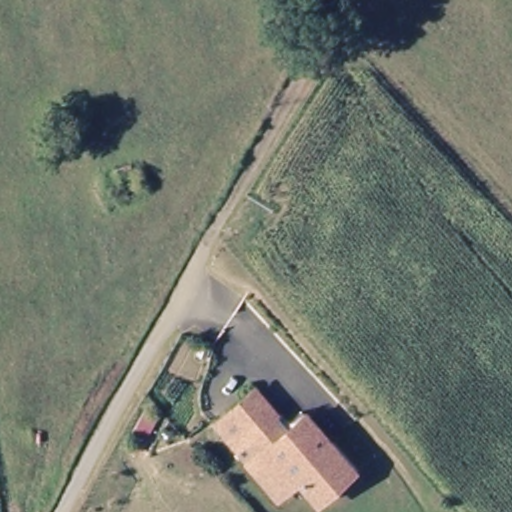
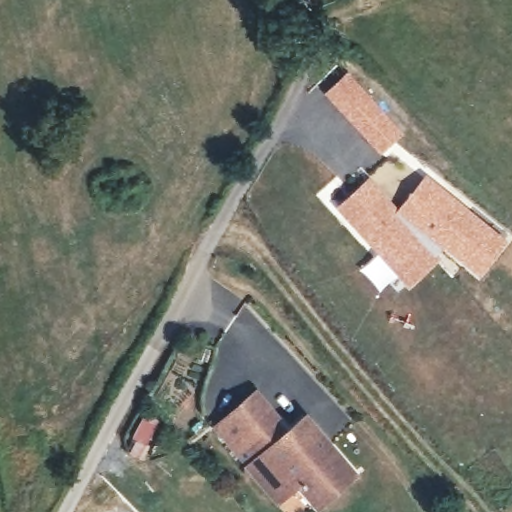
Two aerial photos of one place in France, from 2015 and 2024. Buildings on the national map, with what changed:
new [(405,132),(382,155),(324,92),(349,70),(405,132)]
unchanged [(146,191),(126,200),(118,170),(136,165),(146,191)]
new [(398,207),(426,174),(509,240),(479,276),(443,247),(437,253),(441,258),(408,288),(334,207),(370,175),(398,207)]
unchanged [(308,500),(295,485),(289,490),(275,502),(248,470),(214,431),(234,413),(253,396),(277,425),(286,436),(303,421),(351,475),(332,492),(314,507),(308,500)]

